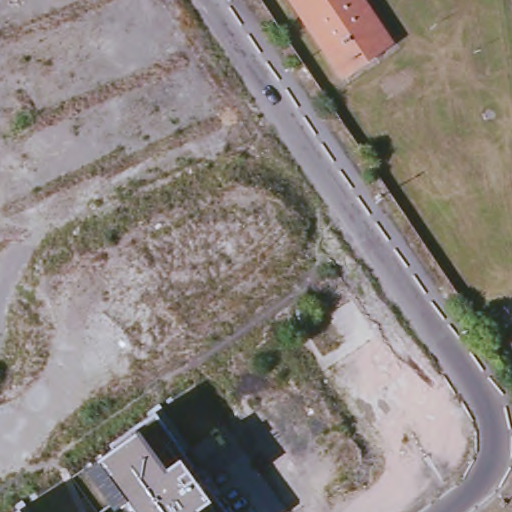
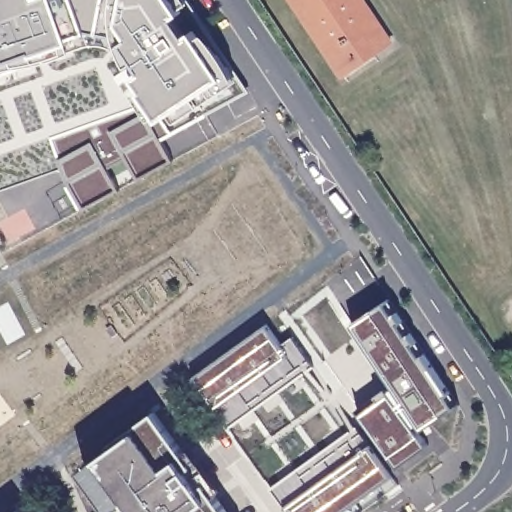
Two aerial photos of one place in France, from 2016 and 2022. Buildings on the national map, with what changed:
new [(188,0),(249,92),(161,140),(173,161),(137,181),(125,159),(106,169),(118,191),(83,210),(66,182),(61,170),(0,191),(0,0),(188,0)]
unchanged [(344,75),(293,0),(364,0),(393,44),(344,75)]
new [(459,403),(419,430),(430,443),(399,467),(358,408),(394,384),(353,322),(389,300),(459,403)]
new [(273,330),(284,322),(316,366),(227,433),(189,380),(268,325),(273,330)]
unchanged [(128,499),(115,508),(88,470),(139,430),(155,413),(228,512),(138,512),(128,499)]
new [(399,485),(387,492),(381,485),(344,512),(286,512),(269,490),(357,425),(399,485)]
unchanged [(19,509),(22,512),(17,512),(19,509)]

